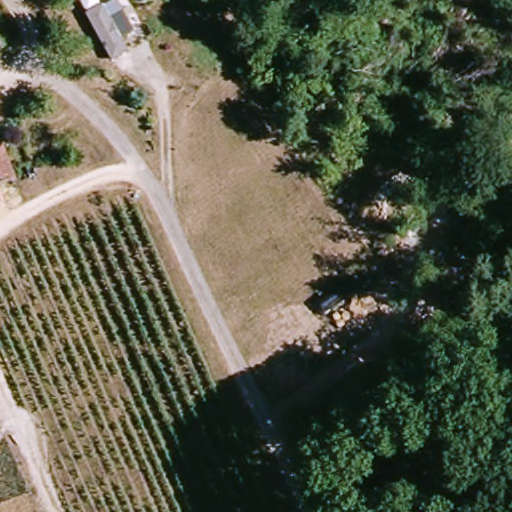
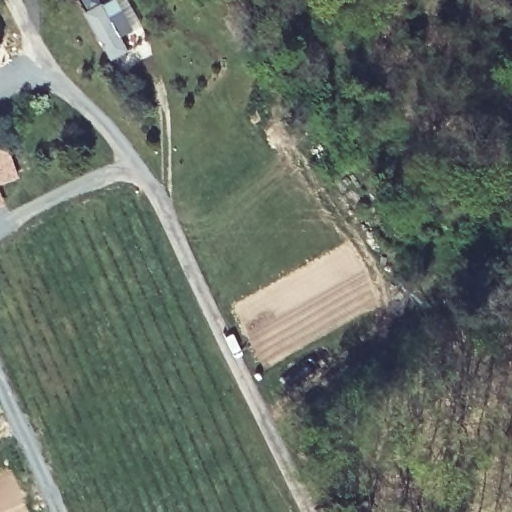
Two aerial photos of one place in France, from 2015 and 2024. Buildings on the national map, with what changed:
unchanged [(104,5),(112,0),(120,0),(135,31),(124,37),(131,52),(110,61),(81,0),(101,0),(104,5)]
unchanged [(11,183),(0,186),(0,154),(4,154),(11,183)]

